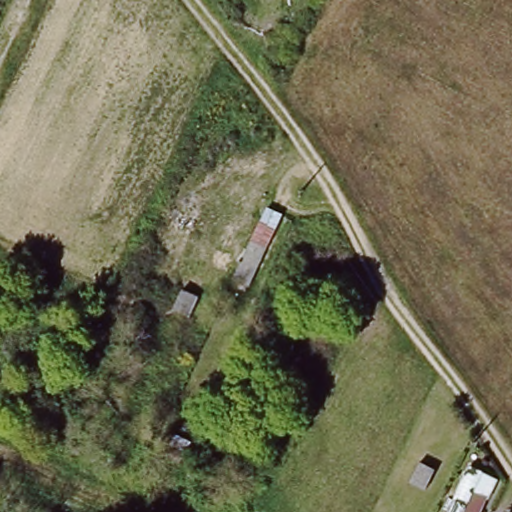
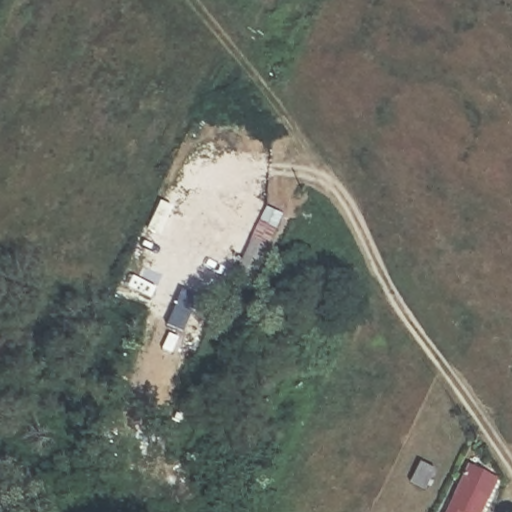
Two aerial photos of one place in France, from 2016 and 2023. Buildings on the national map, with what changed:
unchanged [(266,233),(250,271),(234,264),(250,226),(266,233)]
unchanged [(198,297),(190,316),(174,309),(183,290),(198,297)]
unchanged [(419,453),(434,459),(425,479),(410,473),(419,453)]
unchanged [(484,500),(470,494),(462,512),(441,512),(465,461),(495,476),(484,500)]

